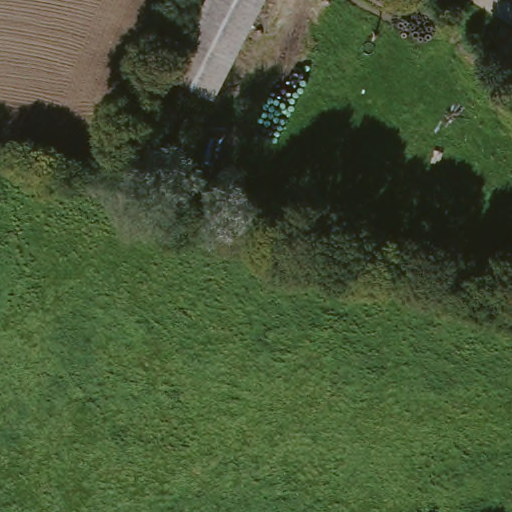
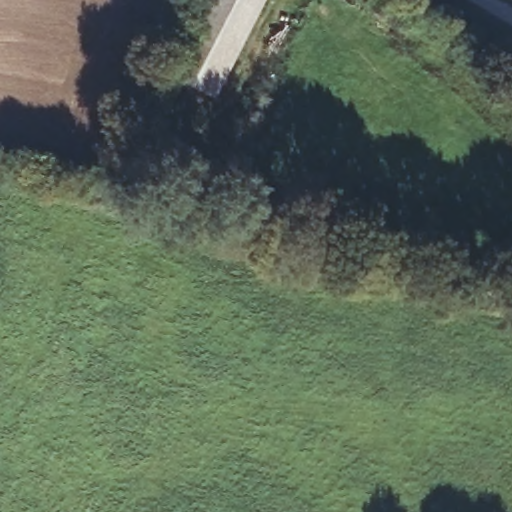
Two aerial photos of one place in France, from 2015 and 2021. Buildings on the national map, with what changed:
unchanged [(211,0),(269,0),(217,100),(171,76),(211,0)]

